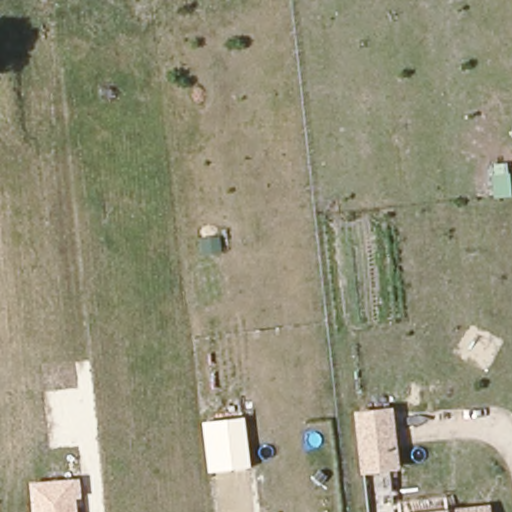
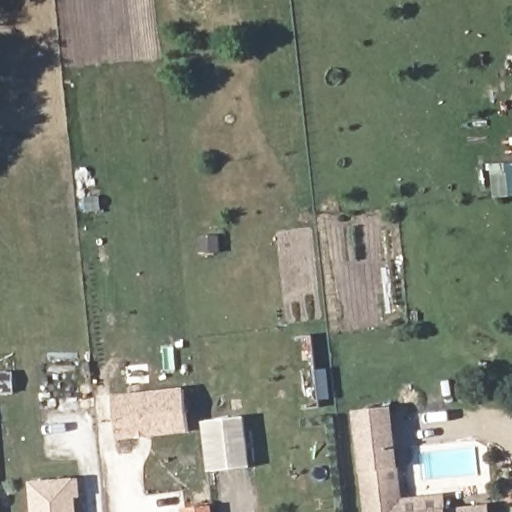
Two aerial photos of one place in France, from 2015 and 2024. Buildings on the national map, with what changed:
new [(491,164),(512,162),(512,196),(494,198),(491,164)]
new [(117,441),(113,395),(184,389),(190,433),(117,441)]
unchanged [(389,468),(363,470),(357,413),(391,410),(395,448),(397,467),(389,468)]
unchanged [(250,467),(209,470),(203,423),(245,419),(250,467)]
unchanged [(74,501),(75,512),(32,512),(30,483),(80,479),(81,501),(74,501)]
new [(213,504),(213,512),(182,512),(182,509),(213,504)]

